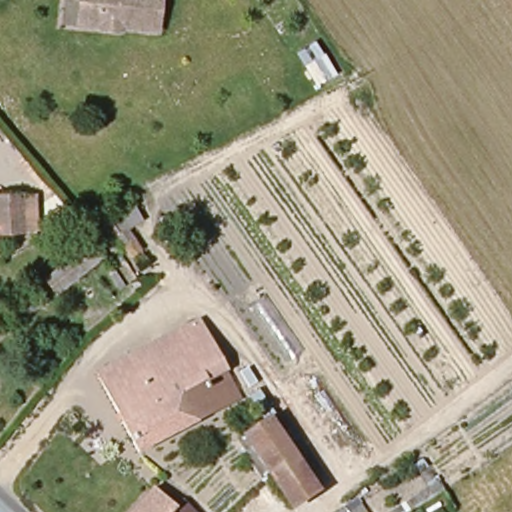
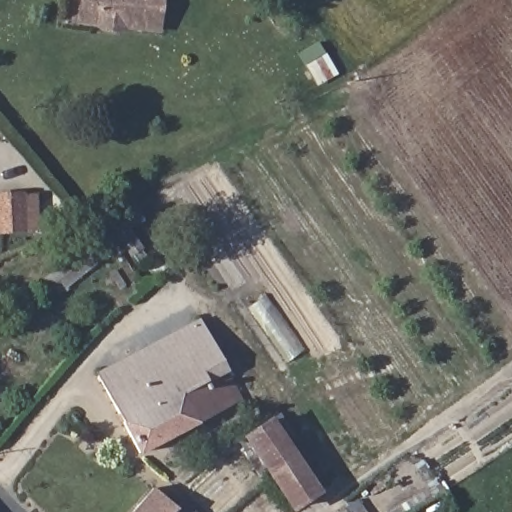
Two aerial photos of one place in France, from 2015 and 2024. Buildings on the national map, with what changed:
unchanged [(162,28),(127,26),(120,30),(108,29),(102,22),(102,8),(82,7),(83,0),(164,0),(162,28)]
unchanged [(0,228),(0,200),(24,197),(25,203),(39,204),(39,226),(0,228)]
unchanged [(47,279),(100,237),(112,254),(62,298),(47,279)]
unchanged [(242,395),(141,448),(100,371),(198,319),(242,395)]
unchanged [(268,422),(317,490),(292,507),(242,440),(268,422)]
unchanged [(173,512),(135,512),(153,491),(175,509),(173,512)]

